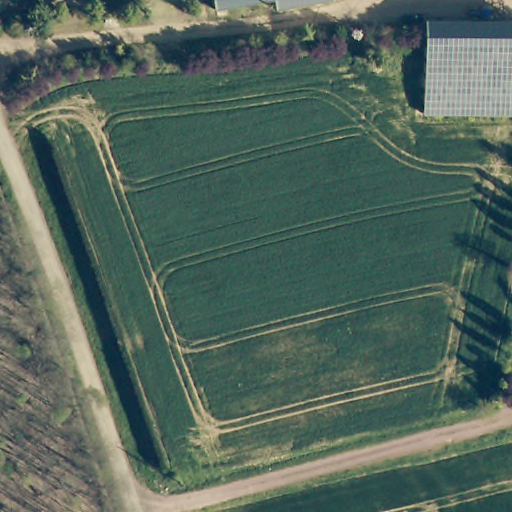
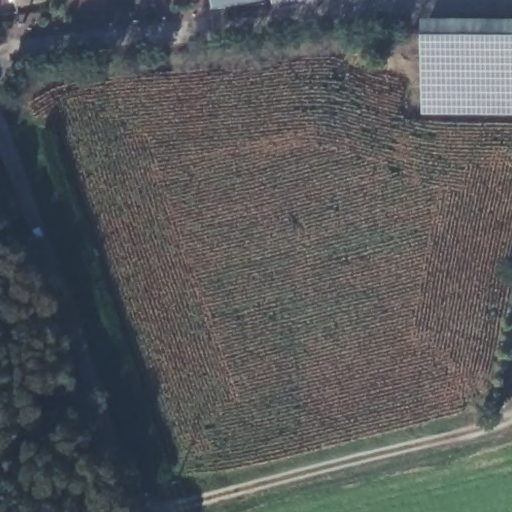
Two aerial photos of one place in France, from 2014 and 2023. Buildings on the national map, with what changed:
unchanged [(16,6),(15,0),(51,0),(16,6)]
unchanged [(237,0),(259,0),(237,4),(237,0)]
unchanged [(272,5),(271,0),(331,0),(273,11),(272,5)]
unchanged [(512,109),(421,108),(422,28),(512,29),(512,109)]

